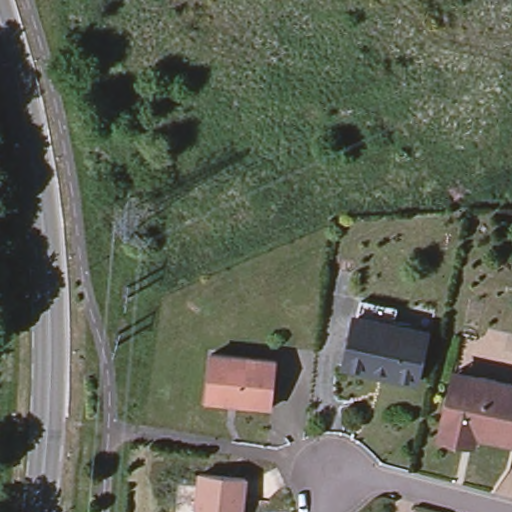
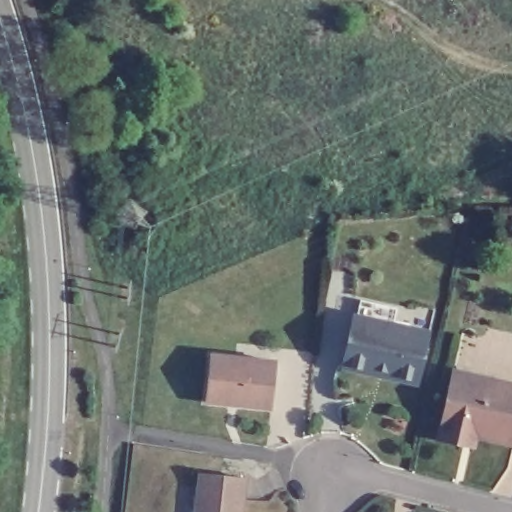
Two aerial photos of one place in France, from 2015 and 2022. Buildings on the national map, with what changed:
unchanged [(359,322),(361,322),(363,312),(365,306),(399,312),(395,330),(421,335),(410,385),(386,379),(371,376),(347,371),(359,322)]
unchanged [(204,400),(209,353),(272,358),(269,406),(235,403),(225,402),(204,400)]
unchanged [(474,435),(472,446),(439,439),(448,391),(452,372),(479,377),(512,384),(512,442),(474,435)]
unchanged [(243,478),(240,510),(239,512),(193,512),(198,473),(243,478)]

